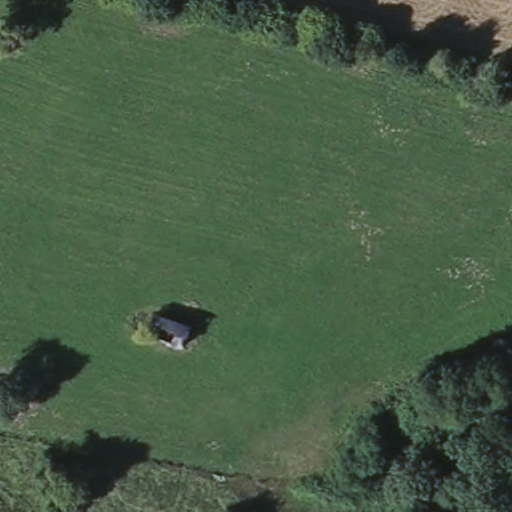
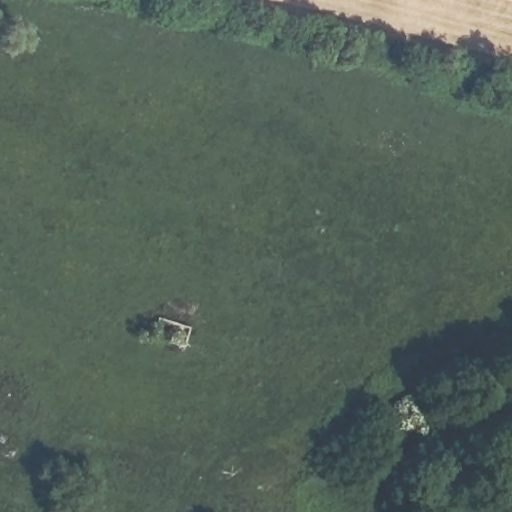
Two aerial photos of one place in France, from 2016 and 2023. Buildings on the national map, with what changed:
unchanged [(160,325),(189,334),(183,350),(155,341),(160,325)]

